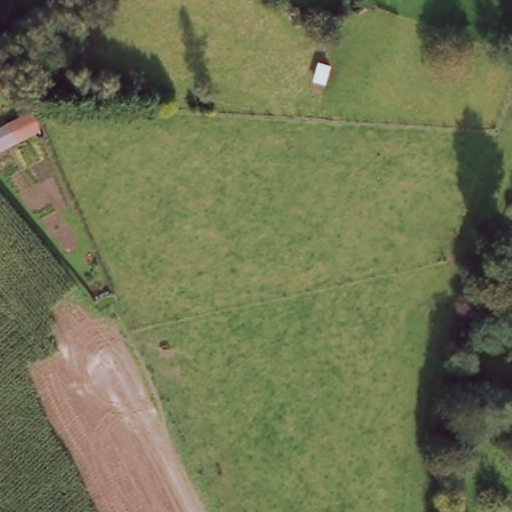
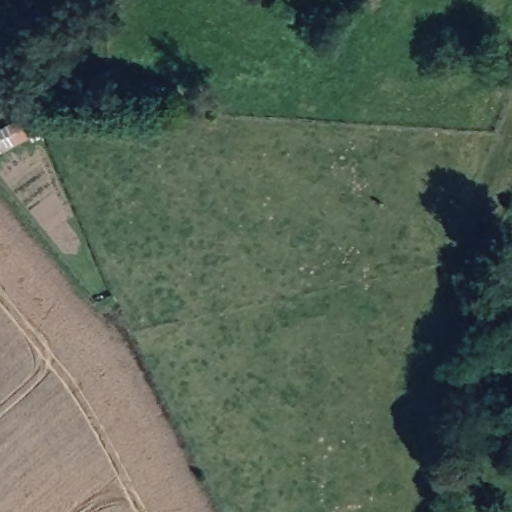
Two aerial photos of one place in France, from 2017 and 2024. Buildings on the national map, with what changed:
unchanged [(43,133),(0,154),(0,131),(34,114),(43,133)]

